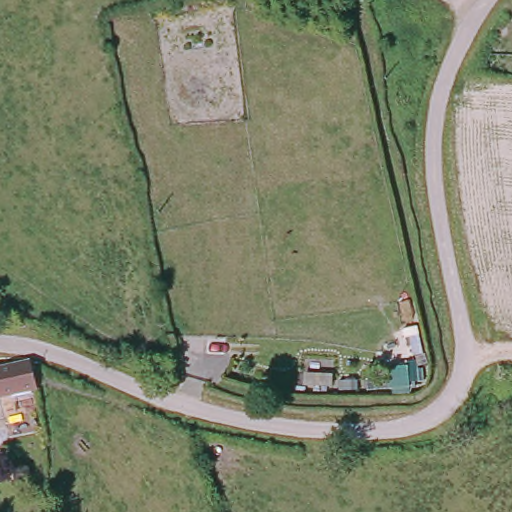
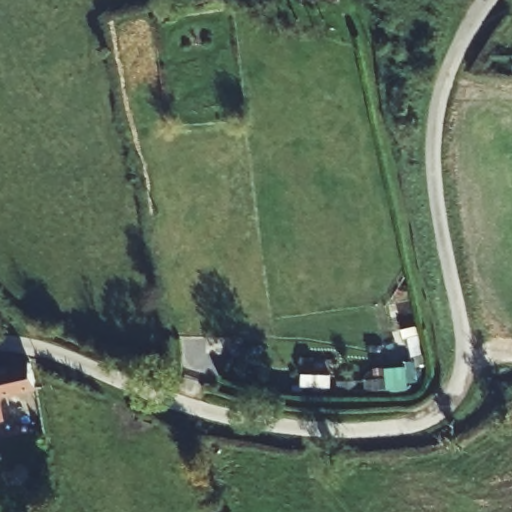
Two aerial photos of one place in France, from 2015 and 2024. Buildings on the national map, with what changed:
[]

